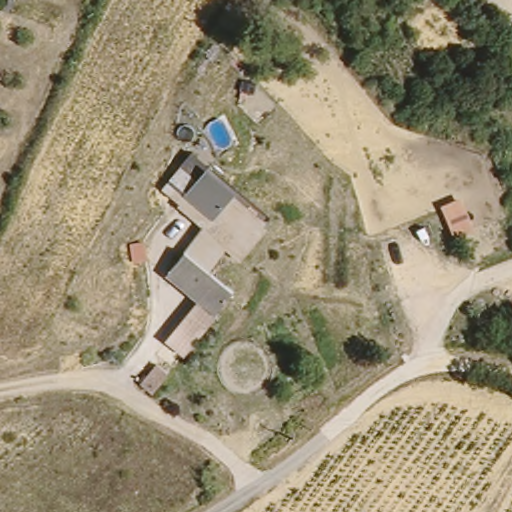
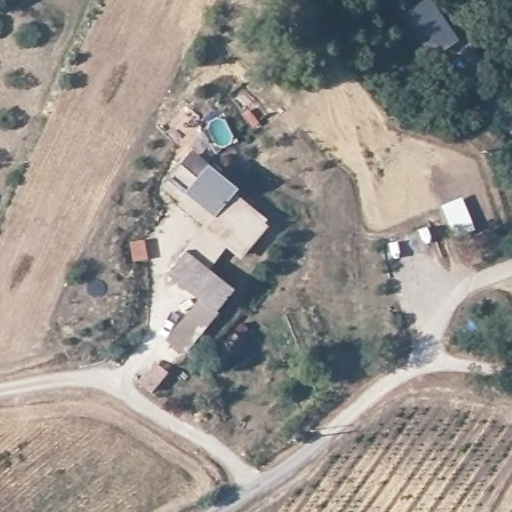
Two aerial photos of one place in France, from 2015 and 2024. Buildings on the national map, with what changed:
new [(459,40),(432,60),(400,15),(421,0),(430,0),(459,40)]
unchanged [(202,228),(160,190),(179,166),(194,178),(202,166),(269,226),(237,263),(222,252),(206,270),(185,253),(202,228)]
unchanged [(206,270),(209,273),(234,293),(183,355),(167,342),(201,302),(168,274),(185,253),(206,270)]
unchanged [(153,366),(156,368),(164,374),(148,393),(140,387),(138,385),(153,366)]

